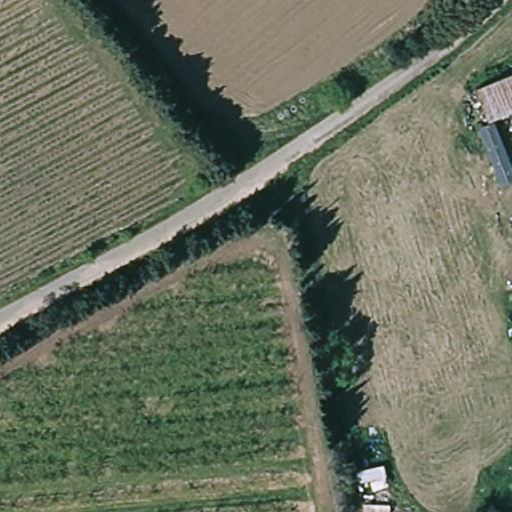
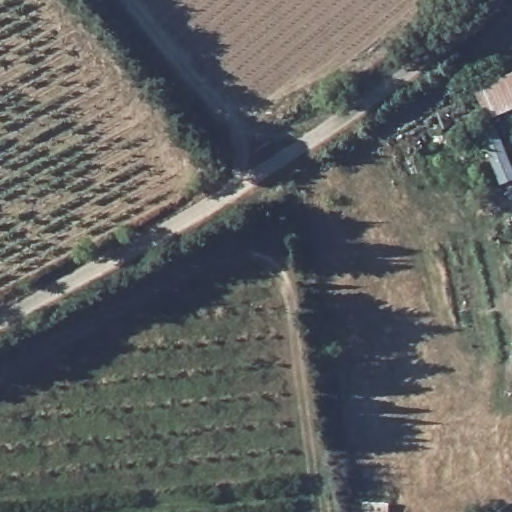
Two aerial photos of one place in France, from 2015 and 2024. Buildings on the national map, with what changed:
unchanged [(478,86),(512,74),(512,114),(490,125),(478,86)]

